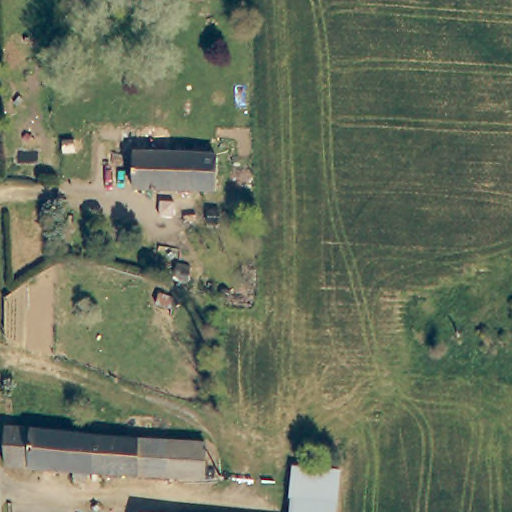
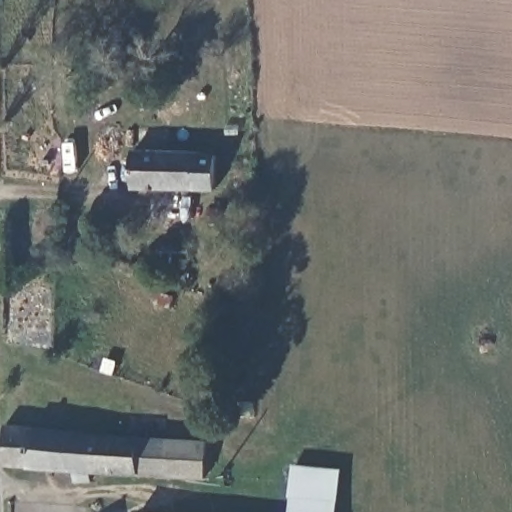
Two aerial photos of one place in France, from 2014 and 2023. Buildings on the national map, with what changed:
unchanged [(218,157),(217,191),(134,187),(134,152),(218,157)]
unchanged [(190,263),(188,278),(175,276),(177,261),(190,263)]
unchanged [(92,430),(142,435),(199,440),(197,475),(106,470),(87,468),(86,480),(66,478),(67,467),(58,467),(35,465),(2,463),(2,422),(92,430)]
unchanged [(304,486),(289,491),(291,466),(292,466),(311,467),(339,469),(336,512),(294,512),(304,486)]

